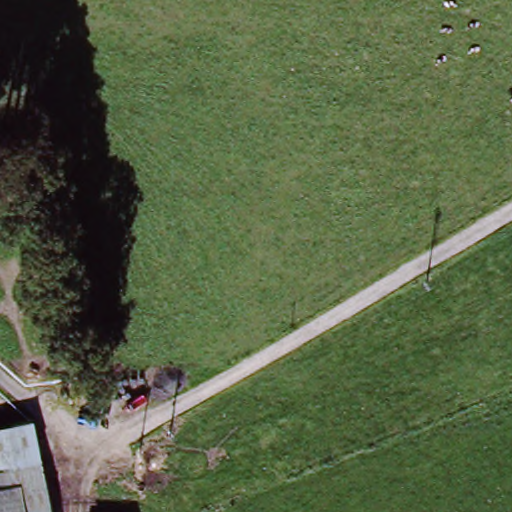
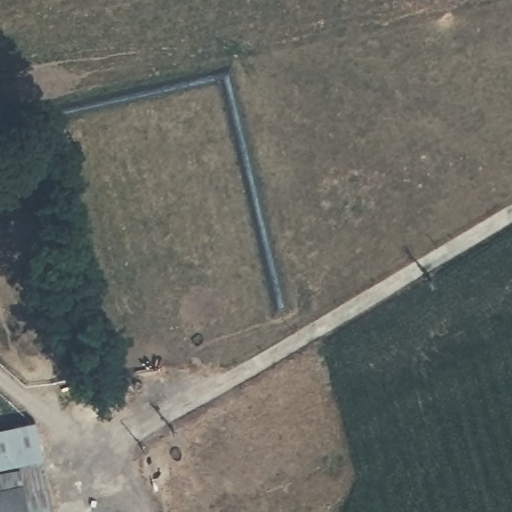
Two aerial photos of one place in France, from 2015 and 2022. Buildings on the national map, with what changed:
unchanged [(0,512),(0,432),(39,425),(57,512),(0,512)]

